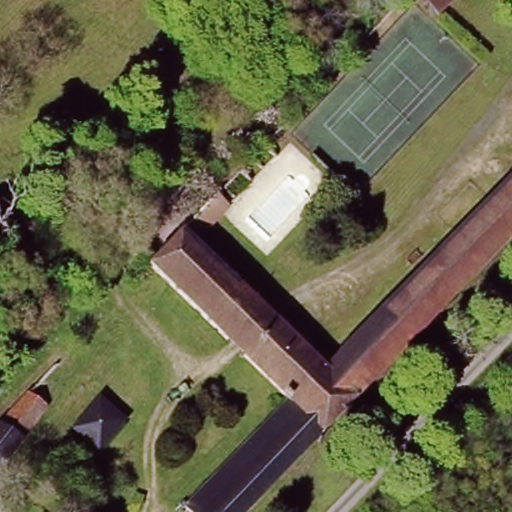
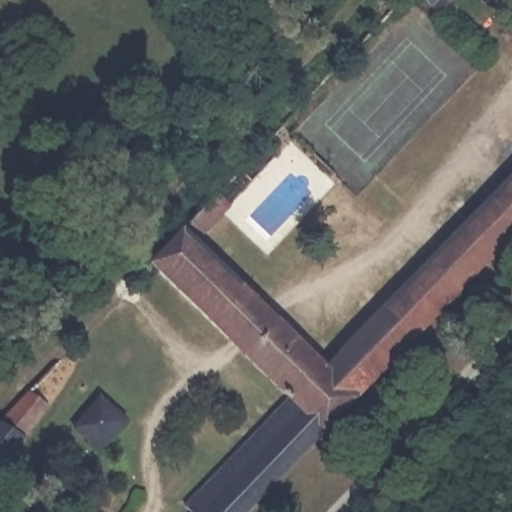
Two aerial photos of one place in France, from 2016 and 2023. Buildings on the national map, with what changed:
unchanged [(421,0),(453,0),(437,16),(421,0)]
unchanged [(270,139),(281,151),(205,230),(330,362),(512,177),(512,245),(320,442),(285,406),(147,265),(270,139)]
unchanged [(39,405),(0,464),(0,410),(20,389),(39,405)]
unchanged [(107,391),(137,415),(102,453),(72,425),(107,391)]
unchanged [(187,505),(285,406),(320,442),(252,512),(193,512),(187,505)]

